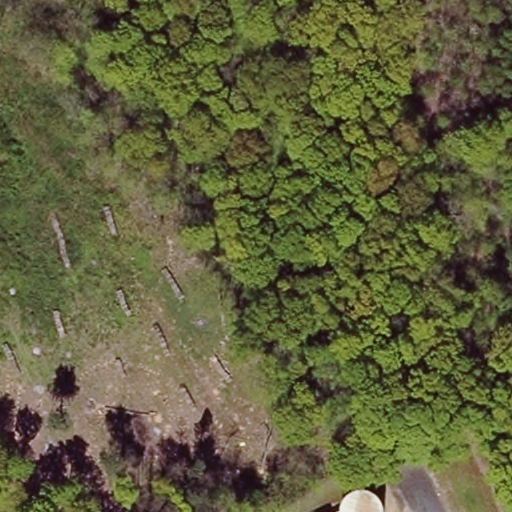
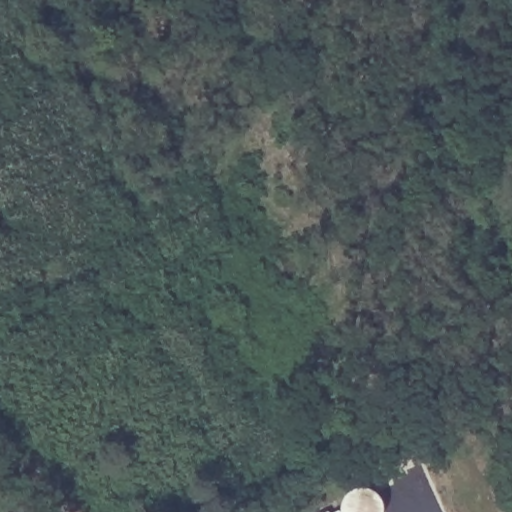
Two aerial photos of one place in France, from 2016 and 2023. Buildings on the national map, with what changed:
unchanged [(349,490),(365,489),(379,497),(383,512),(332,512),(337,510),(341,500),(349,490)]
unchanged [(326,512),(323,512),(325,511),(326,512)]

